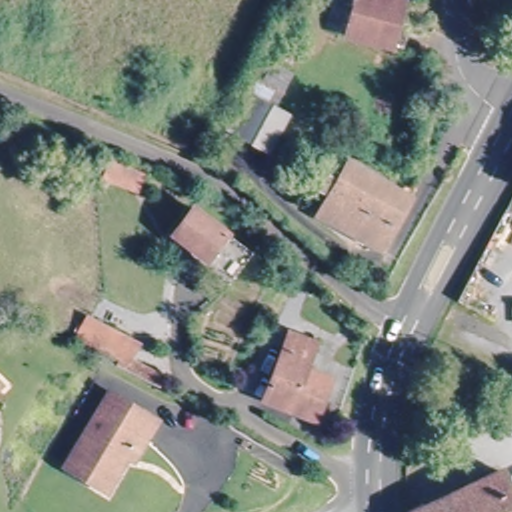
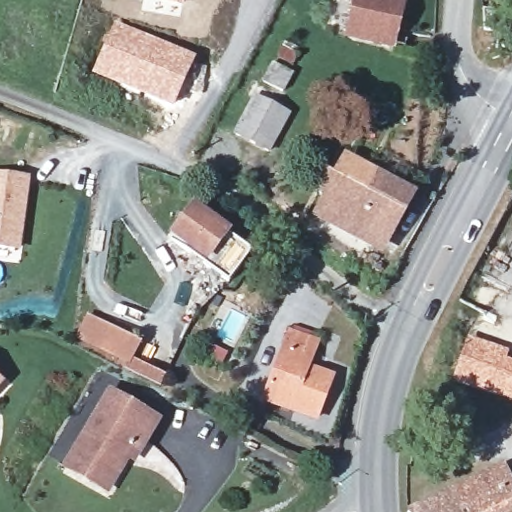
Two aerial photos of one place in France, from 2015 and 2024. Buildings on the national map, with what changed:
new [(147,0),(184,0),(183,7),(147,0)]
unchanged [(347,34),(355,0),(405,0),(405,1),(397,46),(387,44),(347,34)]
new [(114,21),(197,57),(174,107),(92,72),(114,21)]
unchanged [(266,73),(286,83),(277,100),(257,90),(266,73)]
unchanged [(237,133),(242,125),(256,96),(287,112),(273,140),(267,152),(237,133)]
unchanged [(411,184),(374,262),(312,234),(331,190),(347,155),(411,184)]
demolished [(96,185),(102,171),(138,187),(132,200),(96,185)]
new [(30,179),(20,254),(0,251),(0,175),(30,179)]
unchanged [(172,235),(190,207),(222,227),(202,256),(172,235)]
unchanged [(247,245),(227,276),(201,258),(202,256),(222,227),(247,245)]
unchanged [(128,366),(77,340),(87,315),(137,342),(128,366)]
unchanged [(300,377),(318,383),(307,416),(259,400),(282,331),(312,340),(300,377)]
new [(510,351),(507,358),(512,360),(512,401),(451,381),(467,336),(510,351)]
unchanged [(0,386),(0,379),(3,382),(0,386)]
unchanged [(138,455),(130,450),(110,490),(69,466),(110,394),(156,422),(138,455)]
unchanged [(503,470),(512,487),(512,512),(424,512),(503,470)]

